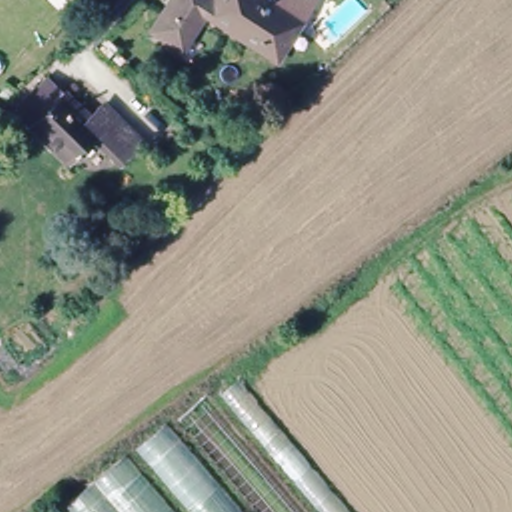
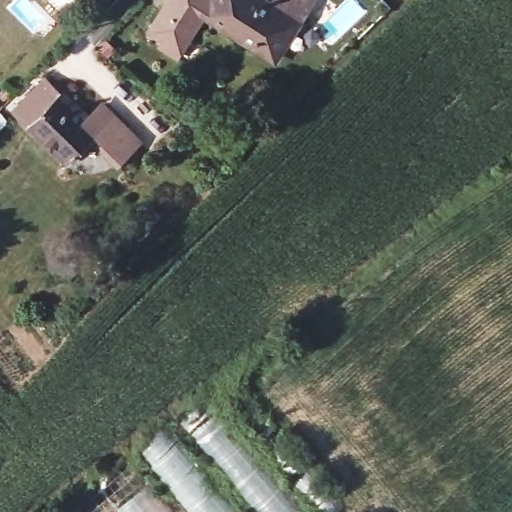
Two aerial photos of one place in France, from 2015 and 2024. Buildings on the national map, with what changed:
unchanged [(210,8),(182,52),(165,42),(170,33),(156,24),(170,2),(174,4),(176,0),(316,0),(305,17),(281,53),(245,30),(210,8)]
unchanged [(116,165),(89,139),(63,165),(11,114),(41,83),(82,124),(96,109),(135,146),(116,165)]
unchanged [(357,512),(324,512),(224,394),(243,377),(357,512)]
unchanged [(314,512),(262,512),(183,418),(213,393),(314,512)]
unchanged [(248,512),(194,512),(140,448),(171,422),(248,512)]
unchanged [(181,512),(74,512),(69,506),(131,453),(181,512)]

